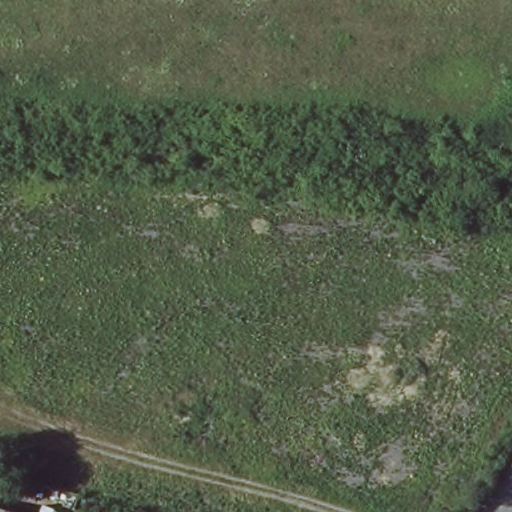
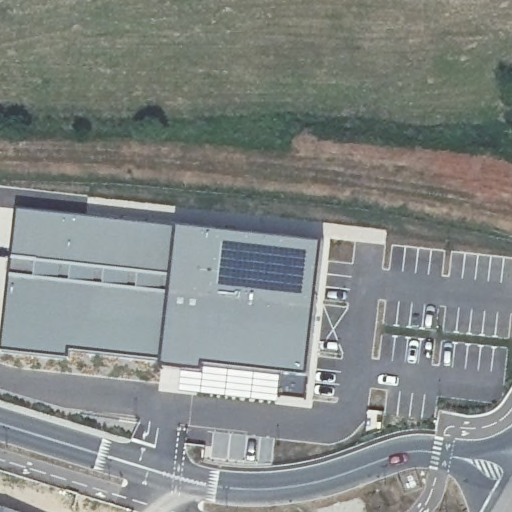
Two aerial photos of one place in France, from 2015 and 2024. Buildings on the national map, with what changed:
new [(9,276),(16,209),(179,227),(162,363),(71,352),(70,360),(0,354),(0,336),(1,317),(9,276)]
new [(162,363),(179,227),(324,242),(319,323),(307,398),(279,396),(280,377),(205,369),(205,373),(161,366),(162,363)]

